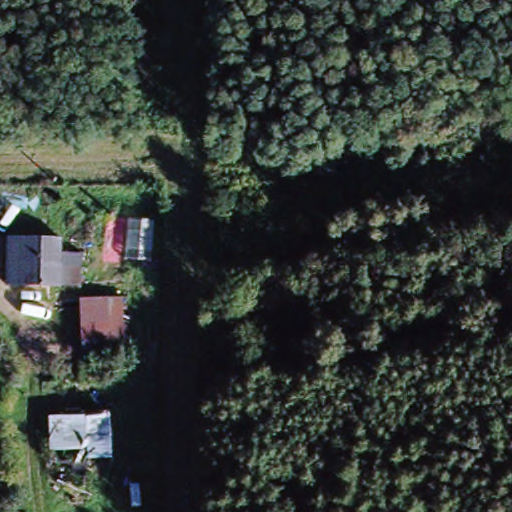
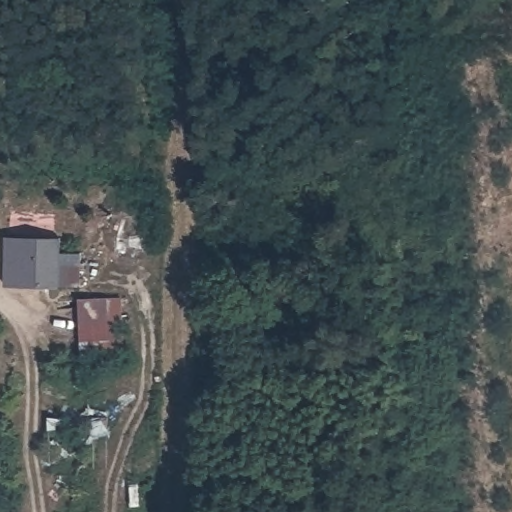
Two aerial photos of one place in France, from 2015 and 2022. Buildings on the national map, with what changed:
unchanged [(58,265),(72,267),(71,286),(2,283),(2,240),(59,240),(58,265)]
unchanged [(75,358),(76,324),(77,302),(120,303),(120,325),(120,359),(75,358)]

